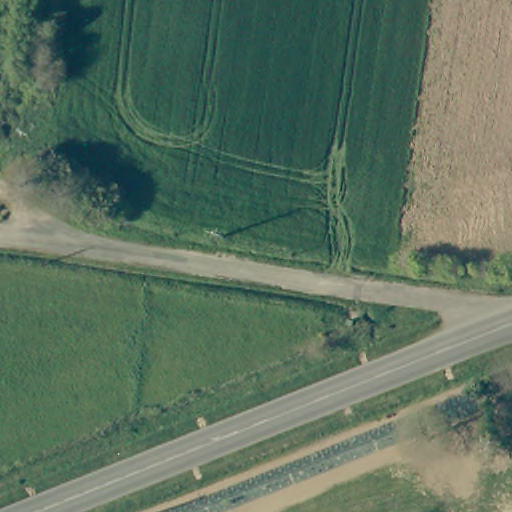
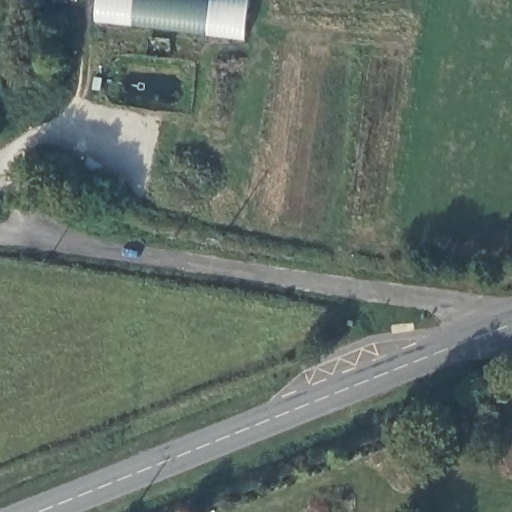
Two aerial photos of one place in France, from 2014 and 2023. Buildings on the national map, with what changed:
new [(247,39),(94,22),(97,0),(251,0),(247,39)]

